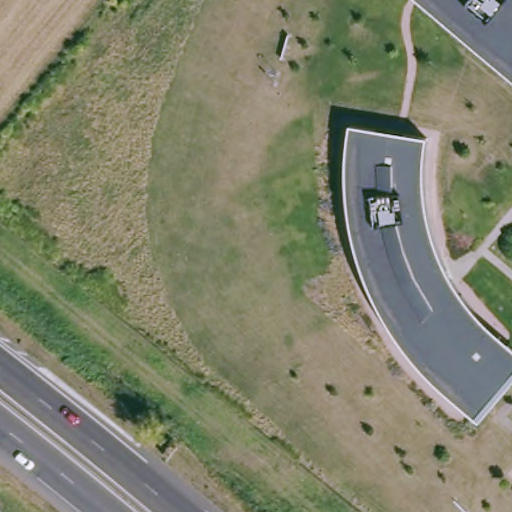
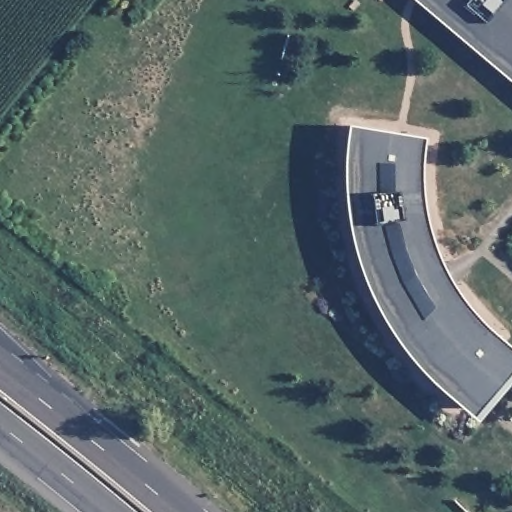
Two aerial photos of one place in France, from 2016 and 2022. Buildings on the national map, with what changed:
unchanged [(421,0),(512,0),(512,77),(431,8),(421,0)]
unchanged [(429,143),(427,157),(426,170),(425,183),(426,195),(427,208),(429,220),(432,232),(435,245),(439,257),(444,270),(454,287),(462,300),(473,315),(481,325),(491,334),(501,344),(495,352),(508,362),(463,415),(449,403),(440,395),(432,388),(426,381),(419,373),(411,363),(402,352),(393,339),(384,326),(379,314),(372,300),(366,287),(363,277),(359,265),(355,251),(353,239),(349,223),(348,207),(347,196),(346,185),(346,174),(347,165),(348,155),(349,146),(350,137),(351,130),(429,143)]

